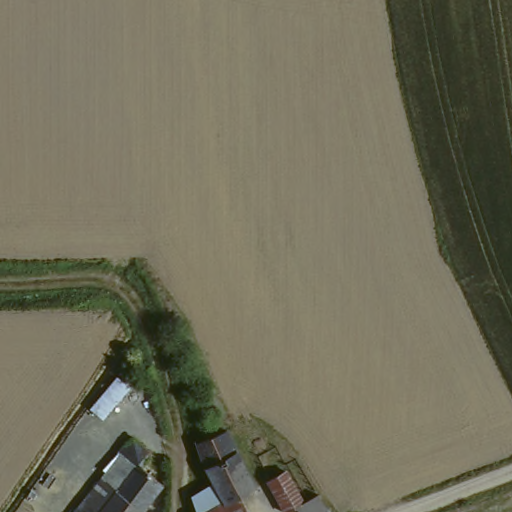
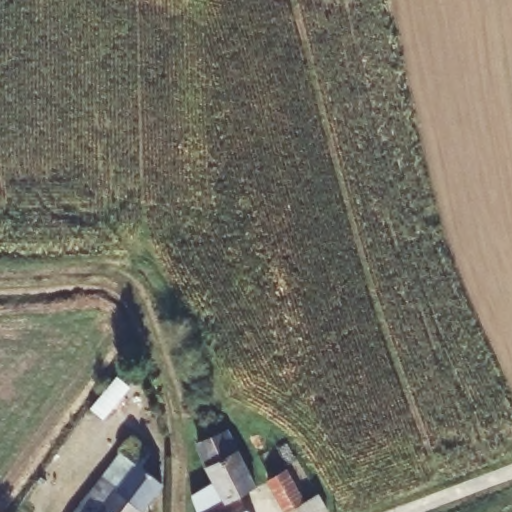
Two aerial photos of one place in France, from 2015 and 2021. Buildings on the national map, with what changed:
unchanged [(210,488),(195,447),(224,437),(230,434),(255,492),(234,500),(239,512),(192,512),(184,498),(210,488)]
unchanged [(141,468),(162,486),(141,512),(70,512),(130,437),(151,458),(141,468)]
unchanged [(302,512),(300,507),(285,512),(281,512),(271,490),(290,482),(299,505),(320,497),(327,512),(302,512)]

